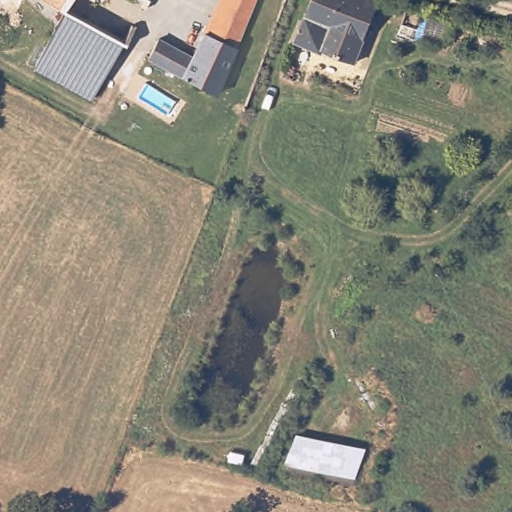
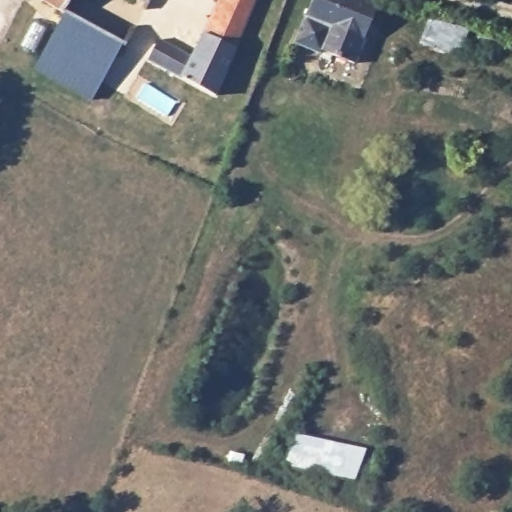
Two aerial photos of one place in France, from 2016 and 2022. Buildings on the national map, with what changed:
unchanged [(153,59),(162,40),(196,56),(208,31),(210,29),(224,0),(259,0),(241,45),(242,48),(221,94),(180,72),(153,59)]
unchanged [(308,43),(313,31),(301,26),(311,0),(379,0),(355,62),(308,43)]
unchanged [(129,39),(124,48),(92,95),(41,65),(67,2),(107,24),(129,39)]

